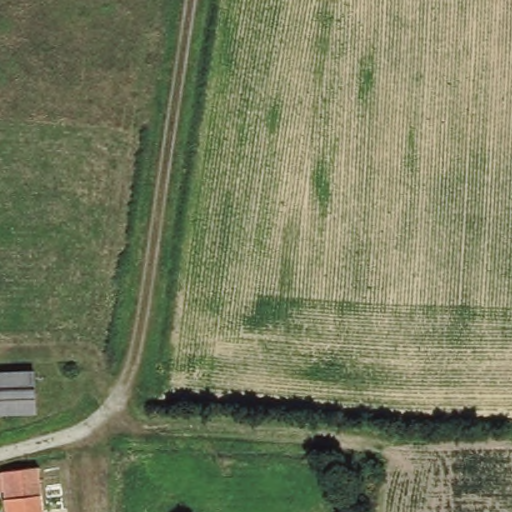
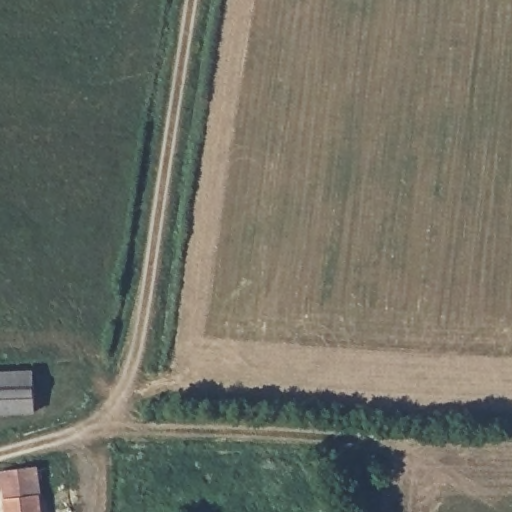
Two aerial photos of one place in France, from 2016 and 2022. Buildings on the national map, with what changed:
unchanged [(34,410),(0,412),(0,373),(31,371),(34,410)]
unchanged [(0,469),(2,468),(44,465),(46,495),(41,496),(44,512),(9,512),(5,490),(0,492),(0,469)]

